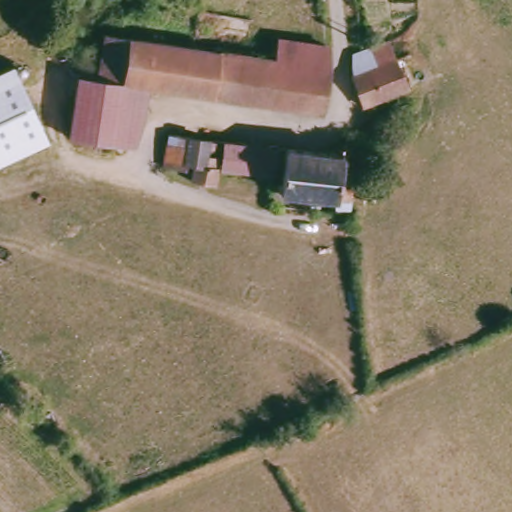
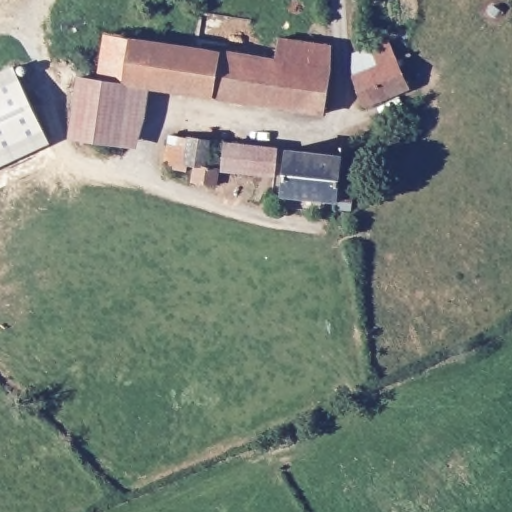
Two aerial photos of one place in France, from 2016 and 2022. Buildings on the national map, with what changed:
unchanged [(88,73),(105,75),(110,39),(281,65),(331,71),(330,99),(326,117),(153,91),(132,88),(123,146),(93,140),(75,137),(80,113),(88,73)]
unchanged [(355,55),(375,47),(392,41),(395,44),(412,90),(370,109),(359,80),(355,55)]
unchanged [(331,71),(281,65),(285,44),(332,51),(331,71)]
unchanged [(49,143),(0,166),(0,71),(12,65),(49,143)]
unchanged [(144,150),(123,146),(132,88),(153,91),(144,150)]
unchanged [(199,167),(192,167),(188,174),(167,171),(172,139),(217,144),(216,152),(206,151),(206,158),(221,160),(220,170),(220,187),(200,186),(199,167)]
unchanged [(230,146),(280,150),(277,177),(225,171),(230,146)]
unchanged [(343,157),(340,200),(287,197),(290,150),(343,157)]

